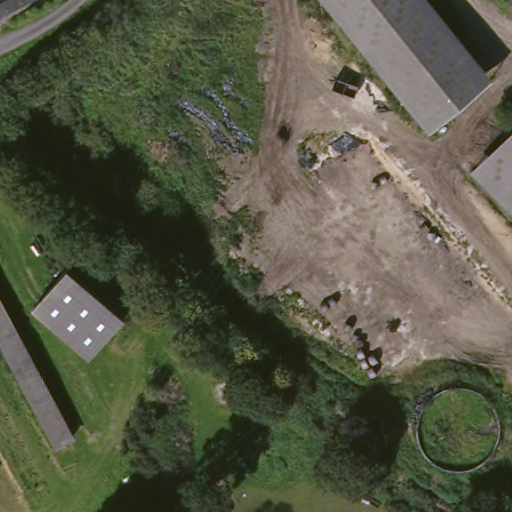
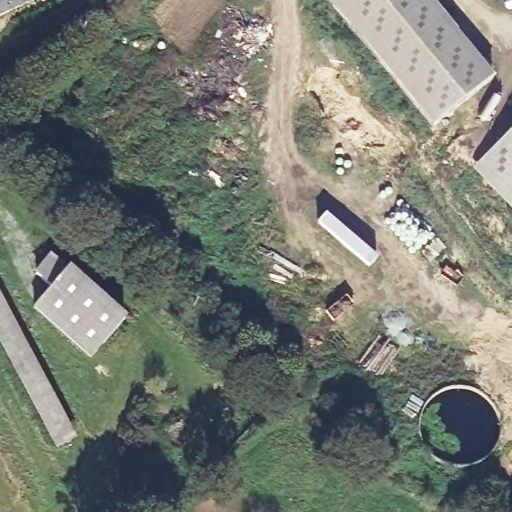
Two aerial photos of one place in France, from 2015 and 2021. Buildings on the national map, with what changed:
unchanged [(0,0),(30,0),(0,19),(0,0)]
unchanged [(471,47),(494,77),(439,122),(434,126),(420,107),(335,0),(433,0),(471,47)]
unchanged [(474,167),(512,130),(512,207),(474,167)]
unchanged [(68,270),(125,317),(96,353),(37,303),(68,270)]
unchanged [(71,453),(0,332),(0,297),(86,443),(71,453)]
unchanged [(33,482),(0,426),(0,393),(47,473),(33,482)]

